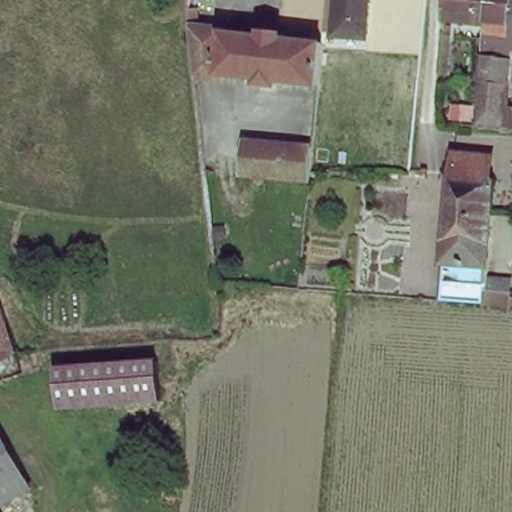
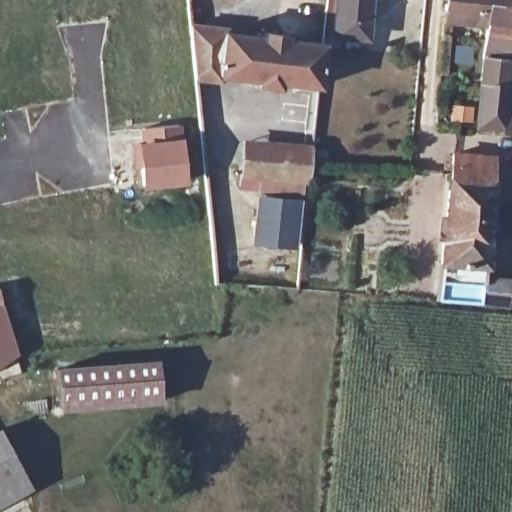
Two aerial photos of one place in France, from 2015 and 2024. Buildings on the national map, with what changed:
unchanged [(339,35),(341,0),(373,0),(370,38),(339,35)]
unchanged [(512,20),(486,19),(485,32),(459,30),(459,18),(446,16),(450,0),(512,0),(512,16),(512,20)]
unchanged [(476,129),(484,35),(485,35),(485,32),(486,19),(512,20),(512,16),(512,43),(509,43),(507,62),(512,64),(512,73),(510,109),(512,110),(512,132),(476,129)]
unchanged [(222,80),(195,76),(191,27),(223,30),(222,74),(222,80)]
unchanged [(259,34),(260,28),(286,30),(287,35),(326,39),(321,86),(282,83),(281,88),(255,85),(254,78),(222,74),(223,30),(259,34)]
unchanged [(445,30),(451,31),(449,77),(442,76),(445,30)]
new [(141,141),(139,128),(181,124),(186,183),(141,190),(131,142),(141,141)]
unchanged [(218,160),(242,163),(245,140),(313,149),(310,174),(309,179),(294,178),(215,171),(218,160)]
unchanged [(454,156),(497,159),(495,185),(452,183),(454,156)]
new [(294,178),(303,179),(301,198),(296,248),(253,244),(258,194),(258,190),(238,189),(239,173),(294,178)]
unchanged [(512,310),(489,308),(442,304),(452,183),(495,185),(490,281),(512,283),(512,297),(512,310)]
unchanged [(13,352),(16,362),(0,370),(0,304),(11,344),(13,352)]
unchanged [(63,414),(57,371),(158,359),(161,359),(166,403),(156,404),(63,414)]
unchanged [(4,512),(0,512),(0,430),(38,495),(4,512)]

